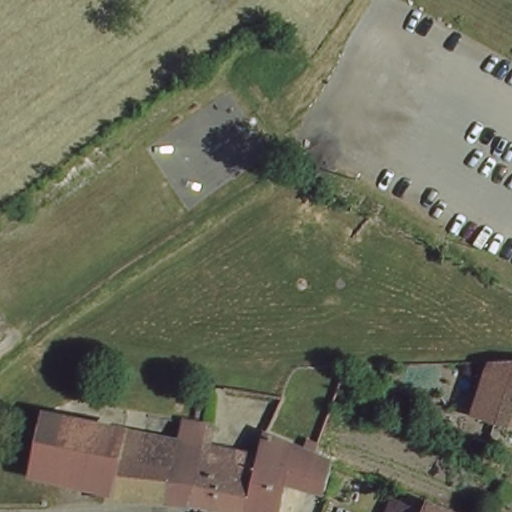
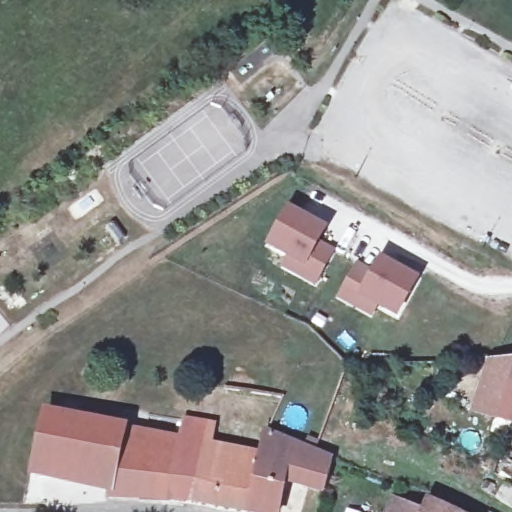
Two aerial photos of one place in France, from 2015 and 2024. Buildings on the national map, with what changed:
new [(264,247),(287,205),(327,227),(317,249),(333,256),(317,286),(278,267),(282,257),(264,247)]
new [(370,318),(333,298),(354,260),(372,271),(380,256),(422,279),(398,322),(373,307),(370,318)]
new [(316,316),(325,320),(321,327),(312,322),(316,316)]
unchanged [(470,413),(488,360),(512,359),(512,360),(492,421),(470,413)]
unchanged [(512,360),(512,429),(492,421),(512,360)]
unchanged [(112,480),(34,463),(44,411),(122,426),(112,480)]
unchanged [(181,437),(184,421),(212,427),(207,450),(182,445),(176,475),(151,471),(146,499),(109,497),(112,480),(122,426),(181,437)]
unchanged [(237,510),(217,505),(229,456),(259,463),(264,441),(296,448),(314,452),(334,457),(326,490),(306,485),(286,478),(282,492),(276,512),(251,512),(248,511),(237,510)]
unchanged [(195,501),(180,501),(146,499),(151,471),(176,475),(182,445),(207,450),(195,501)]
unchanged [(195,501),(207,450),(229,456),(217,505),(195,501)]
unchanged [(492,476),(480,470),(485,457),(497,461),(492,476)]
unchanged [(512,491),(512,510),(496,502),(504,486),(512,491)]
unchanged [(423,500),(448,512),(418,512),(423,500)]
unchanged [(388,501),(416,512),(383,512),(388,501)]

